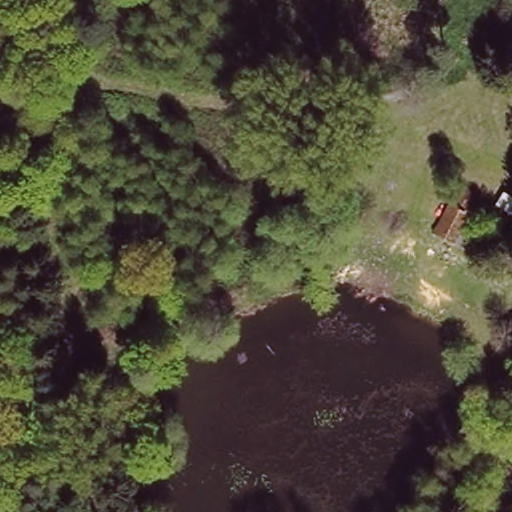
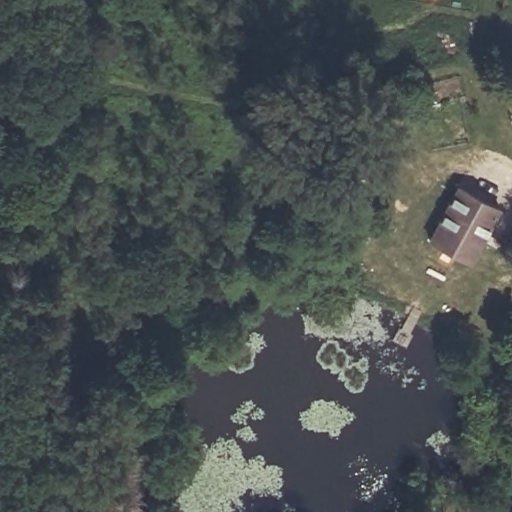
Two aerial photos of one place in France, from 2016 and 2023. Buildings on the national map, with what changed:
demolished [(474,189),(497,202),(479,236),(455,224),(474,189)]
new [(488,209),(462,257),(431,240),(457,192),(488,209)]

